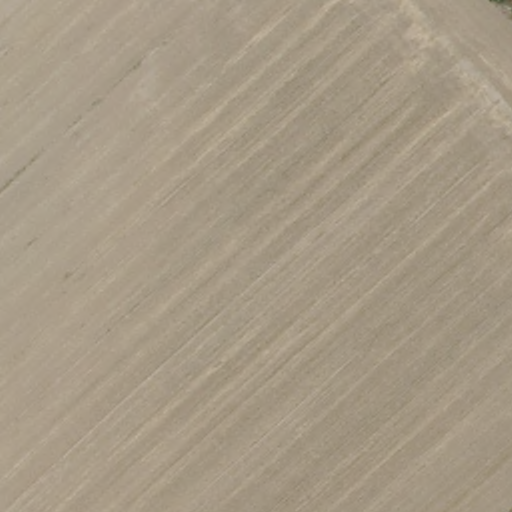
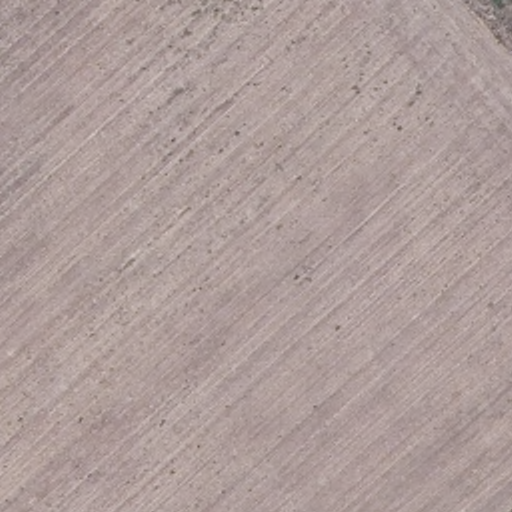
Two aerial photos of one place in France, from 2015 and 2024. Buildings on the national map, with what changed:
[]

